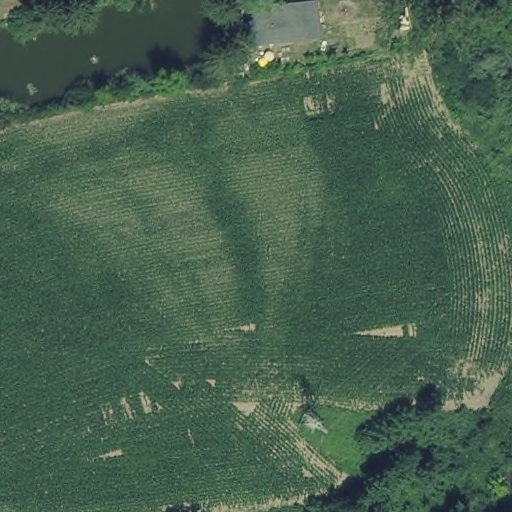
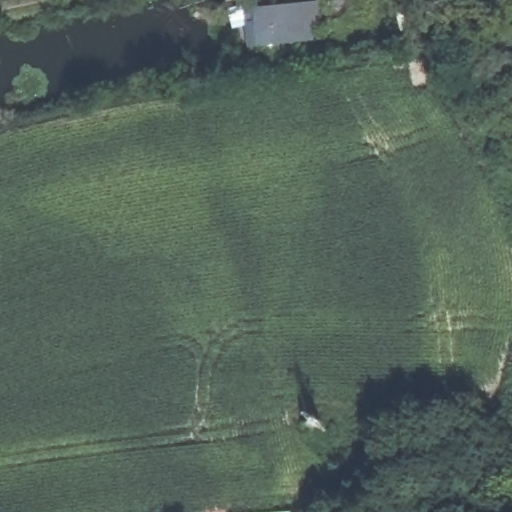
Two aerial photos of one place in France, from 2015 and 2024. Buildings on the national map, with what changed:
unchanged [(250,40),(246,1),(253,0),(288,0),(292,34),(250,40)]
unchanged [(295,46),(292,6),(318,1),(325,42),(295,46)]

